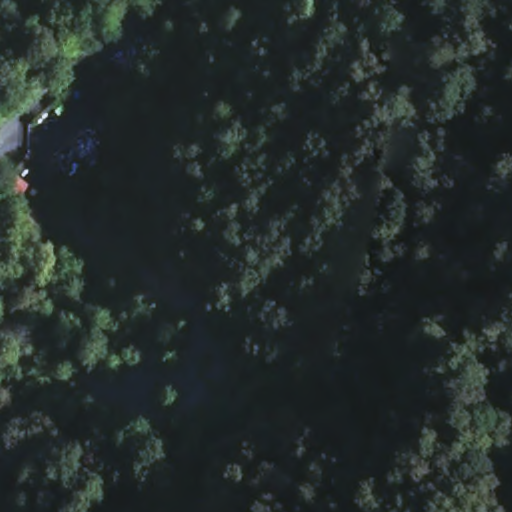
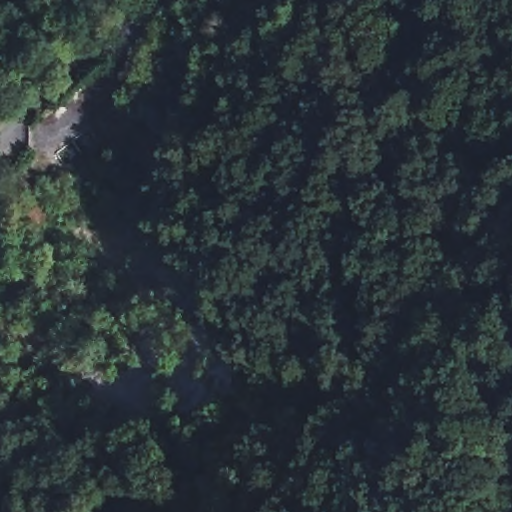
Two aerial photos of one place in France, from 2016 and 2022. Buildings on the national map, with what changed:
unchanged [(0,186),(17,167),(26,174),(41,189),(22,207),(0,188),(0,186)]

